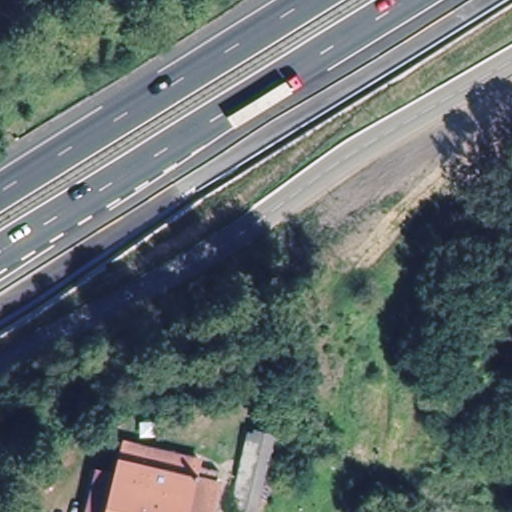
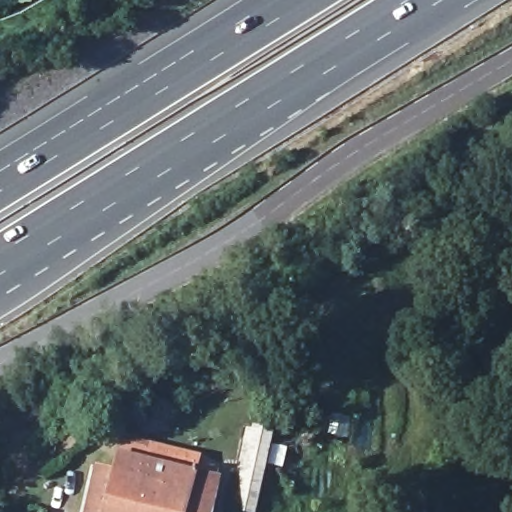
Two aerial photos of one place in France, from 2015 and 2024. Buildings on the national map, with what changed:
unchanged [(247,483),(240,482),(249,433),(273,437),(260,512),(242,512),(247,483)]
unchanged [(124,454),(152,460),(154,454),(203,464),(202,473),(222,478),(215,512),(81,512),(88,472),(95,473),(101,474),(119,477),(124,454)]

